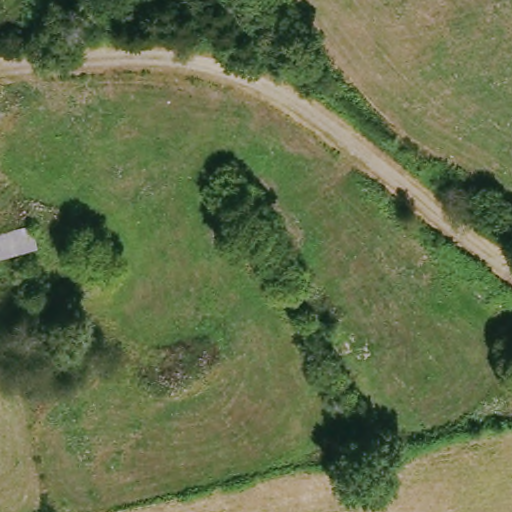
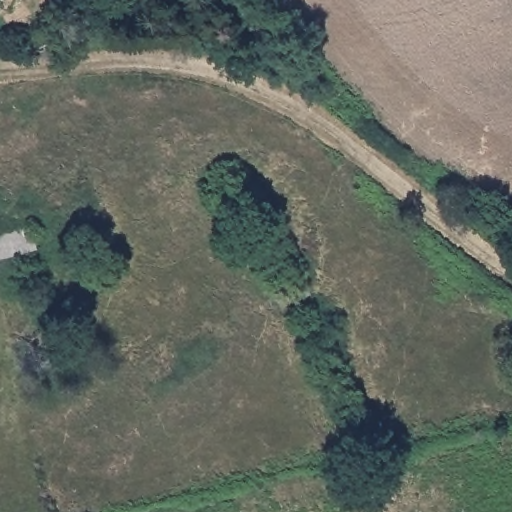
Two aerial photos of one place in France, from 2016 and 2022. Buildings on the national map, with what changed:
unchanged [(37,225),(43,253),(0,264),(0,234),(37,225)]

